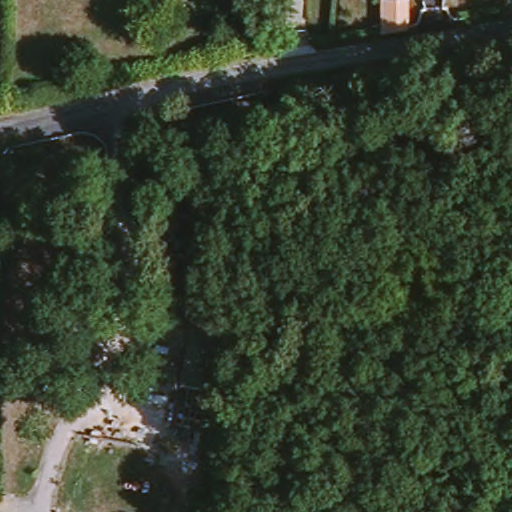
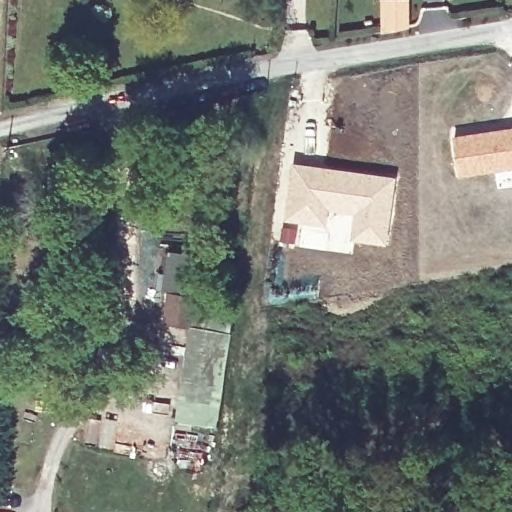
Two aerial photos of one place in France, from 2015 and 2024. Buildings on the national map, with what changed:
new [(512,168),(460,176),(453,135),(512,126),(512,168)]
new [(293,160),(397,176),(387,245),(349,239),(351,220),(330,217),(327,228),(283,219),(293,160)]
unchanged [(232,333),(220,423),(220,424),(179,417),(187,357),(172,355),(177,324),(159,322),(165,282),(210,288),(204,328),(232,333)]

